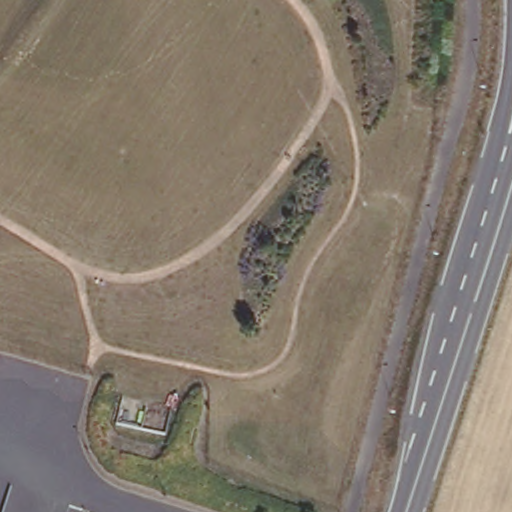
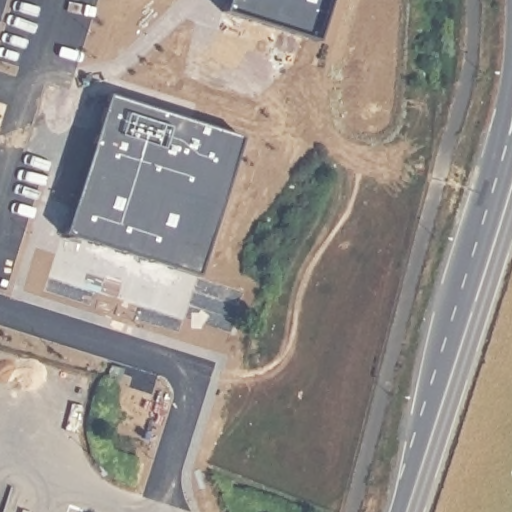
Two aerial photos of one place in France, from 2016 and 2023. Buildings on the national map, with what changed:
new [(318,40),(229,12),(232,0),(330,0),(318,40)]
new [(237,139),(197,273),(69,237),(110,98),(237,139)]

